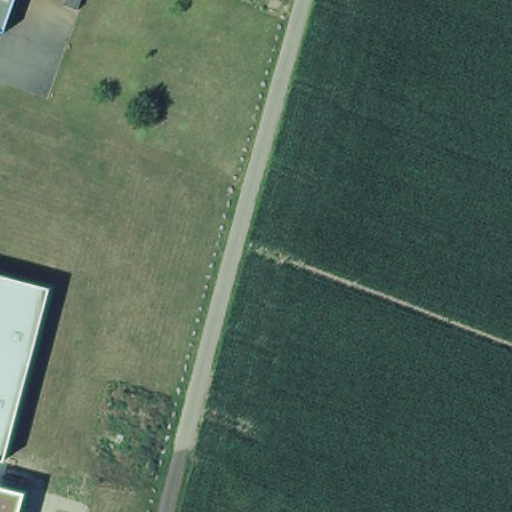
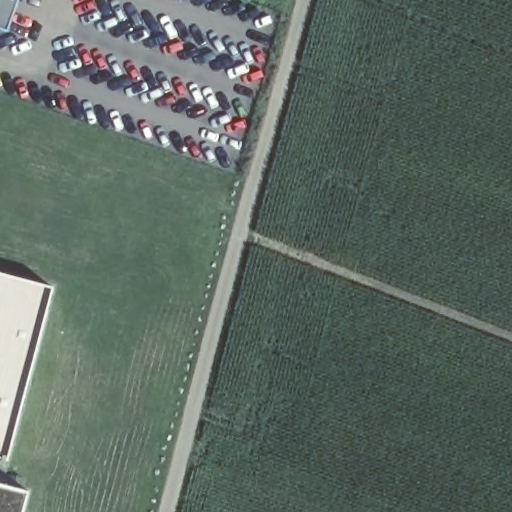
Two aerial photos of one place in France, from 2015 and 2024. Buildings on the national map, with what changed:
unchanged [(0,38),(0,0),(16,0),(2,39),(0,38)]
unchanged [(66,5),(68,0),(84,0),(80,10),(66,5)]
unchanged [(45,316),(2,463),(0,462),(0,276),(51,290),(45,316)]
unchanged [(0,489),(23,496),(18,512),(0,512),(0,489)]

